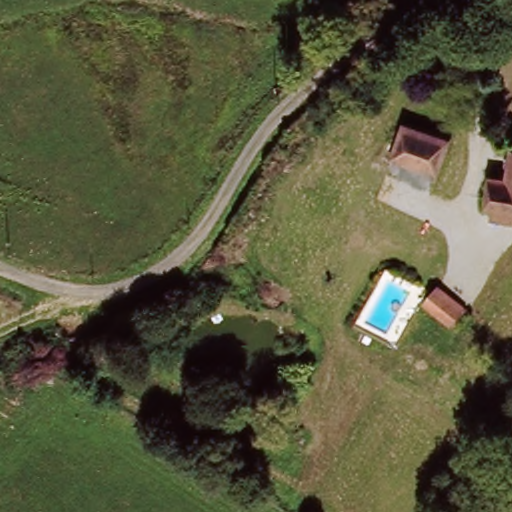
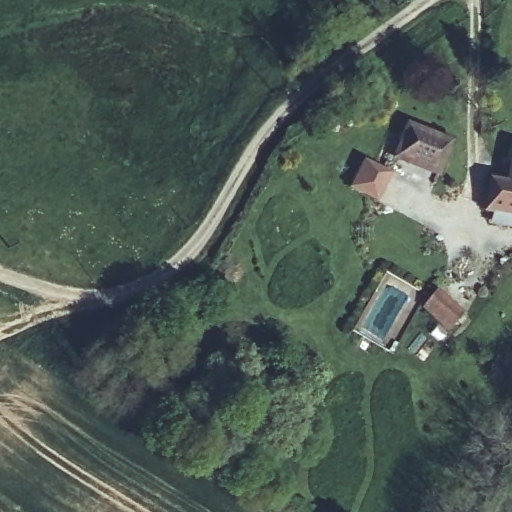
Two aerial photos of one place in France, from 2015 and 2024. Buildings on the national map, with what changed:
unchanged [(390,158),(402,123),(449,142),(435,176),(390,158)]
new [(377,202),(345,188),(360,158),(390,173),(377,202)]
unchanged [(493,221),(495,205),(489,205),(492,176),(511,179),(512,168),(512,224),(493,221)]
unchanged [(447,330),(420,308),(434,290),(461,312),(447,330)]

